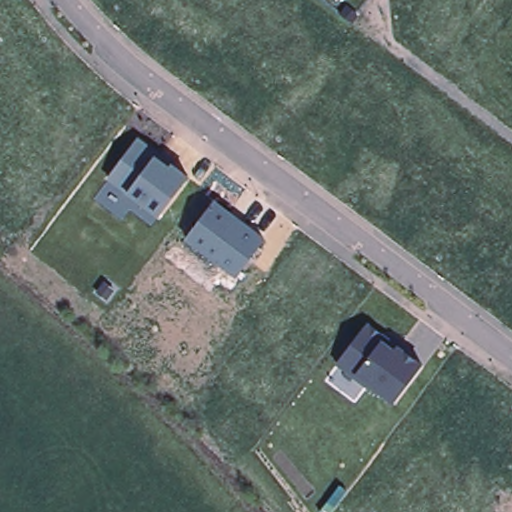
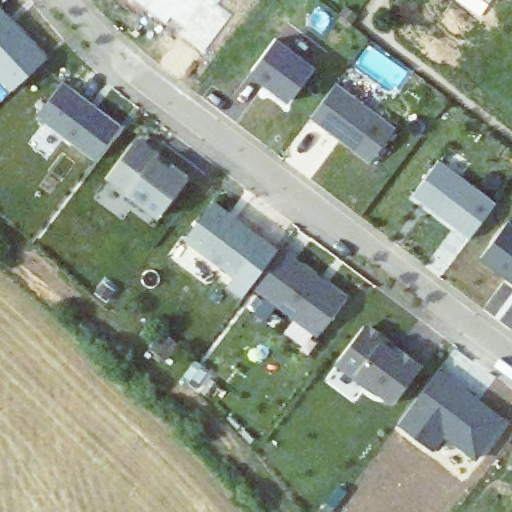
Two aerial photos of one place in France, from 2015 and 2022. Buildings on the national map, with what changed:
new [(232,16),(204,54),(180,37),(185,30),(170,19),(165,24),(133,0),(221,0),(217,4),(232,16)]
new [(483,0),(493,0),(490,4),(483,0)]
new [(10,94),(0,82),(0,9),(48,58),(10,94)]
new [(251,72),(277,38),(316,67),(290,102),(251,72)]
new [(310,117),(337,84),(396,129),(370,162),(310,117)]
new [(119,129),(97,163),(37,116),(62,86),(119,129)]
unchanged [(142,141),(158,154),(172,164),(188,177),(158,216),(108,179),(135,143),(142,141)]
new [(412,194),(440,160),(477,189),(480,185),(499,200),(497,204),(470,238),(412,194)]
unchanged [(265,238),(236,275),(187,239),(217,201),(265,238)]
new [(512,282),(482,259),(508,224),(512,227),(512,282)]
new [(251,288),(282,247),(296,256),(297,259),(347,297),(317,335),(251,288)]
unchanged [(395,403),(370,384),(368,387),(337,363),(364,328),(371,327),(380,334),(397,347),(422,366),(395,403)]
new [(502,419),(476,462),(445,438),(435,452),(400,424),(441,372),(502,419)]

